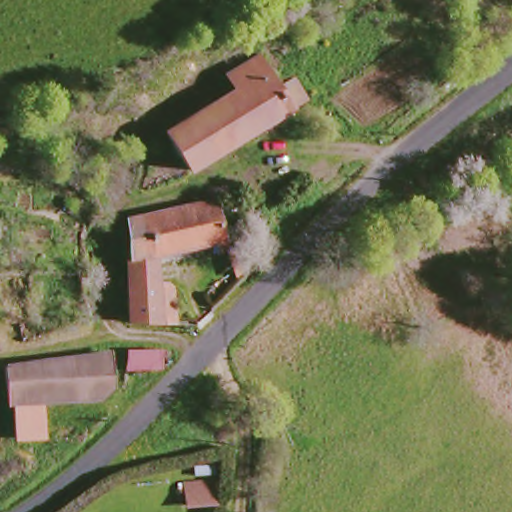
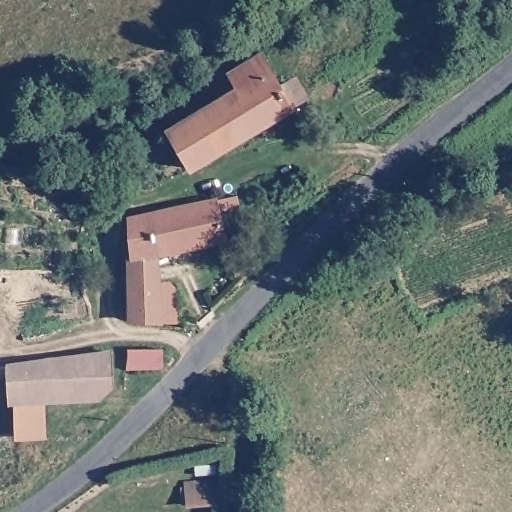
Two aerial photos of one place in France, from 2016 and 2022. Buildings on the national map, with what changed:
unchanged [(291,74),(306,93),(288,106),(191,175),(169,141),(226,97),(214,80),(253,54),(275,85),(291,74)]
unchanged [(133,317),(115,219),(214,196),(230,257),(202,264),(198,244),(163,251),(169,311),(133,317)]
unchanged [(124,367),(122,346),(150,345),(152,366),(124,367)]
unchanged [(4,433),(2,369),(110,351),(110,380),(92,399),(35,404),(33,433),(4,433)]
unchanged [(223,476),(224,499),(198,499),(196,478),(223,476)]

